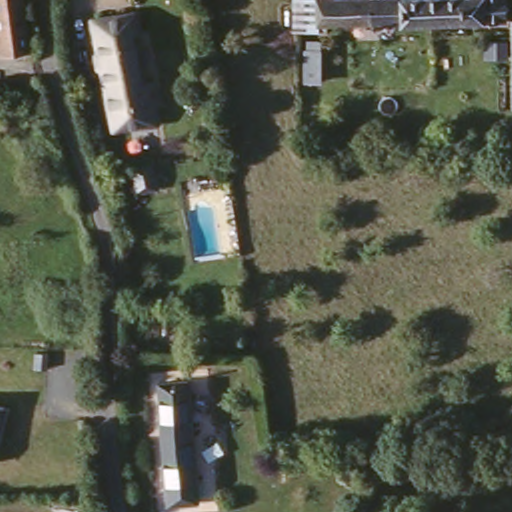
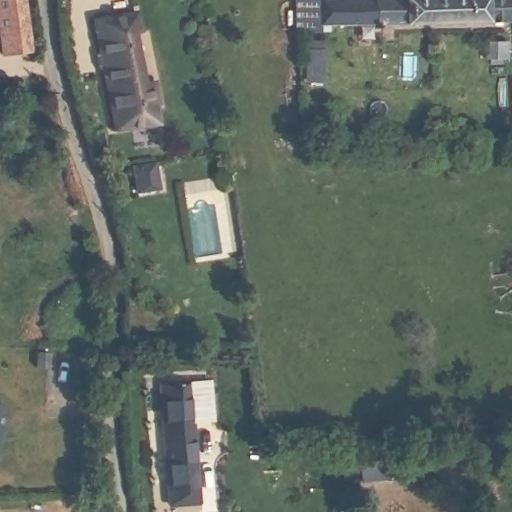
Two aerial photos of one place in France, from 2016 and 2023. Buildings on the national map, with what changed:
unchanged [(5,52),(0,8),(0,0),(25,0),(31,48),(5,52)]
unchanged [(503,0),(503,17),(319,22),(318,32),(296,32),(296,0),(503,0)]
unchanged [(115,12),(115,19),(139,15),(142,31),(135,32),(145,86),(159,82),(165,115),(159,116),(160,122),(121,130),(100,15),(115,12)]
unchanged [(152,162),(156,187),(135,190),(131,166),(152,162)]
unchanged [(182,386),(190,505),(163,507),(155,387),(182,386)]
unchanged [(6,402),(0,432),(0,401),(6,402)]

